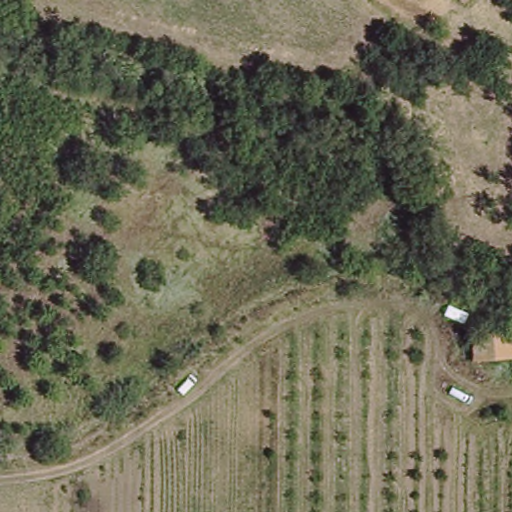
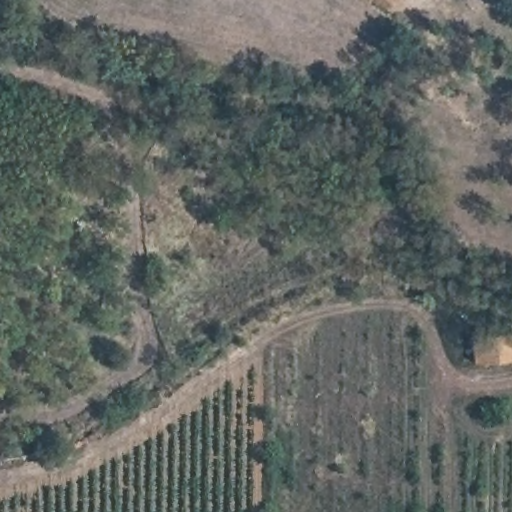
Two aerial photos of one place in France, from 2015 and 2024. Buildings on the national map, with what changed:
unchanged [(512,337),(512,362),(470,360),(471,335),(512,337)]

